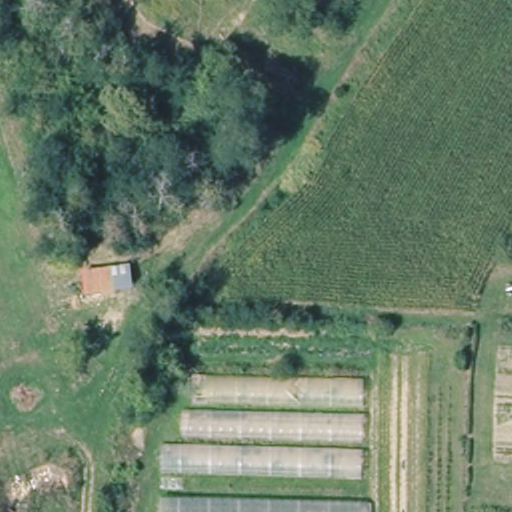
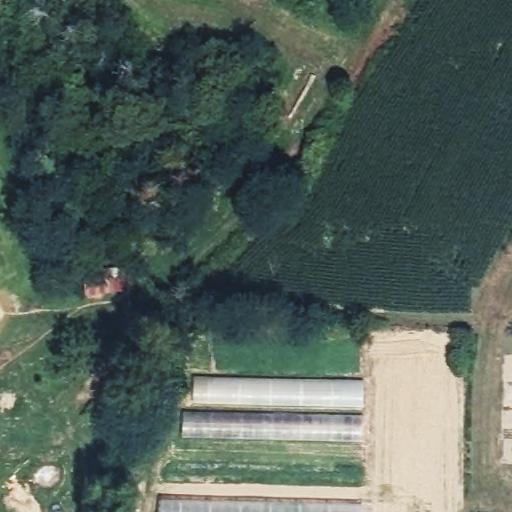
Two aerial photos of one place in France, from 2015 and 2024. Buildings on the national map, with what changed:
unchanged [(83,275),(131,270),(133,292),(85,299),(83,275)]
unchanged [(158,472),(158,445),(180,445),(181,410),(192,410),(193,378),(364,381),(362,474),(158,472)]
unchanged [(364,507),(364,512),(160,512),(160,501),(364,507)]

